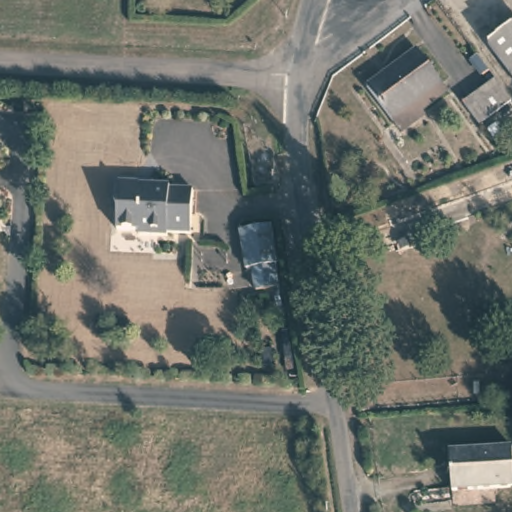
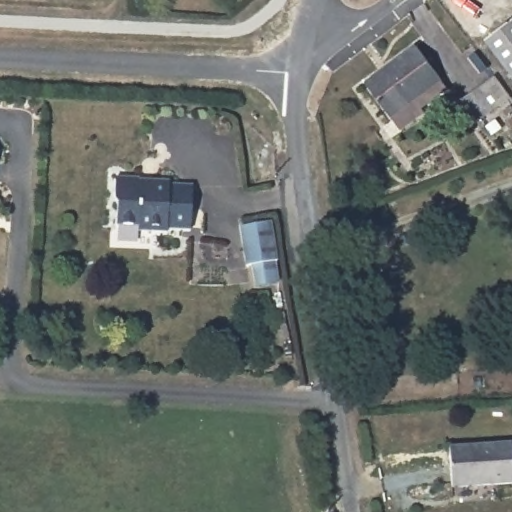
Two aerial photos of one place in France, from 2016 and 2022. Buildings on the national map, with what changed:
unchanged [(512,24),(512,67),(492,39),(512,24)]
unchanged [(425,106),(428,110),(404,127),(395,114),(371,81),(422,43),(447,76),(454,85),(425,106)]
unchanged [(481,118),(465,98),(496,74),(511,95),(481,118)]
unchanged [(140,187),(151,187),(154,182),(172,182),(173,188),(189,189),(188,230),(168,229),(168,235),(138,234),(138,227),(119,226),(120,204),(113,204),(114,177),(140,178),(140,187)]
unchanged [(256,278),(253,257),(248,257),(241,216),(270,211),(278,252),(275,253),(279,274),(256,278)]
unchanged [(452,486),(449,446),(512,444),(512,483),(452,486)]

